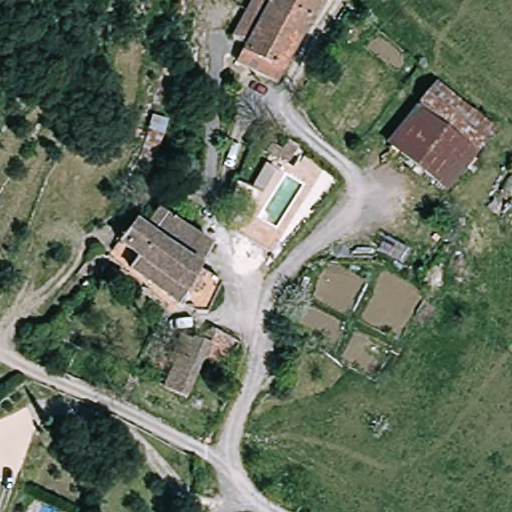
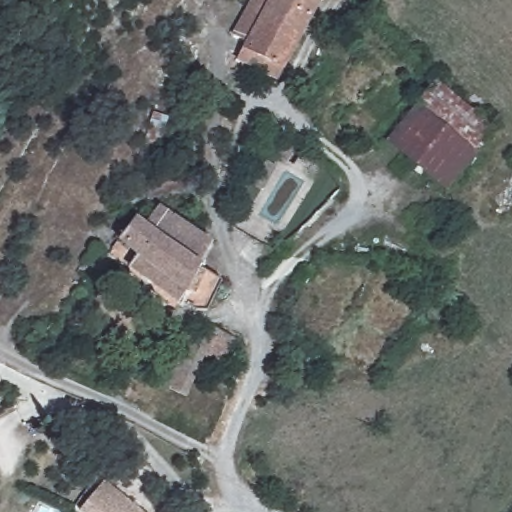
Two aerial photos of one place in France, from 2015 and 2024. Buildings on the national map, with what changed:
unchanged [(250,47),(254,40),(238,30),(254,0),(325,0),(289,68),(282,81),(244,59),(250,47)]
unchanged [(442,77),(499,124),(481,145),(424,98),(442,77)]
unchanged [(481,145),(451,182),(394,134),(424,98),(481,145)]
unchanged [(218,242),(207,267),(228,280),(212,310),(200,309),(190,303),(188,307),(135,267),(142,254),(125,240),(142,217),(151,222),(165,205),(218,242)]
unchanged [(111,260),(93,283),(78,272),(95,247),(111,260)]
unchanged [(174,363),(168,360),(183,333),(192,337),(195,333),(211,340),(217,328),(236,337),(226,355),(222,353),(220,360),(208,354),(188,395),(163,384),(174,363)]
new [(79,510),(103,480),(143,512),(81,512),(79,510)]

